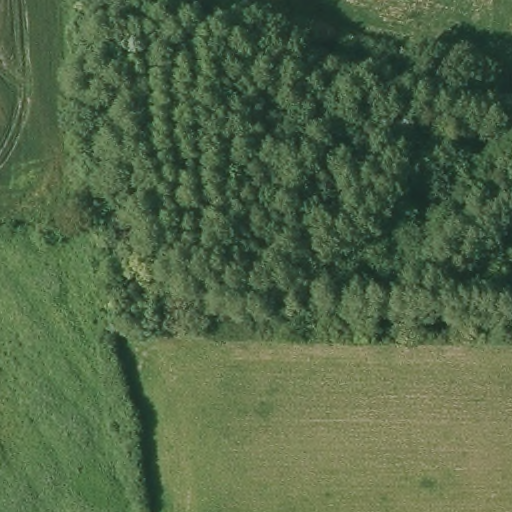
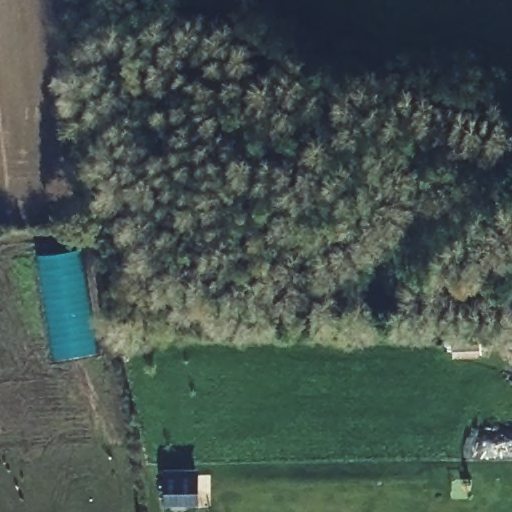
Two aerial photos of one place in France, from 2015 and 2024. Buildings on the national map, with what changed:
new [(82,249),(99,355),(52,362),(37,257),(82,249)]
new [(198,503),(164,503),(165,467),(200,468),(198,503)]

